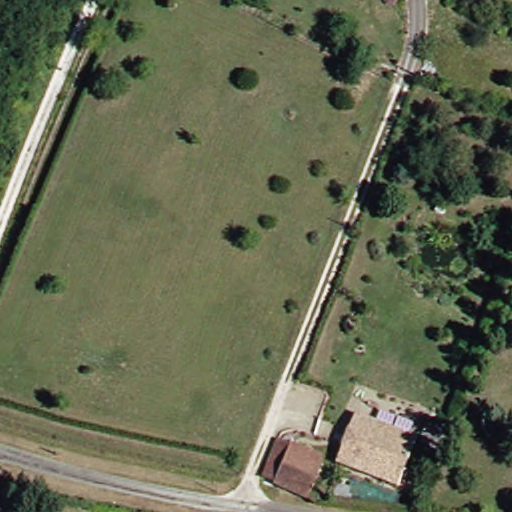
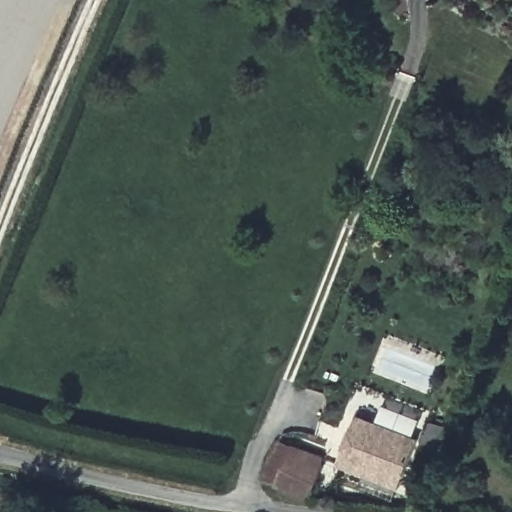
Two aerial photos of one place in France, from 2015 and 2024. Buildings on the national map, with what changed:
unchanged [(405,435),(387,484),(326,462),(333,441),(336,435),(343,413),(405,435)]
unchanged [(430,437),(412,431),(416,417),(434,423),(430,437)]
unchanged [(312,457),(319,460),(324,468),(312,502),(274,486),(274,483),(262,479),(276,443),(312,457)]

